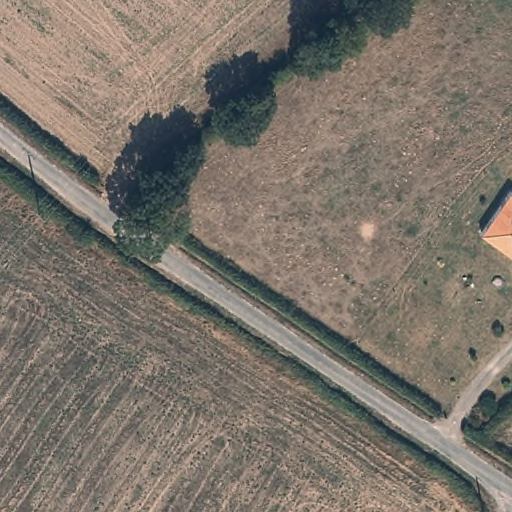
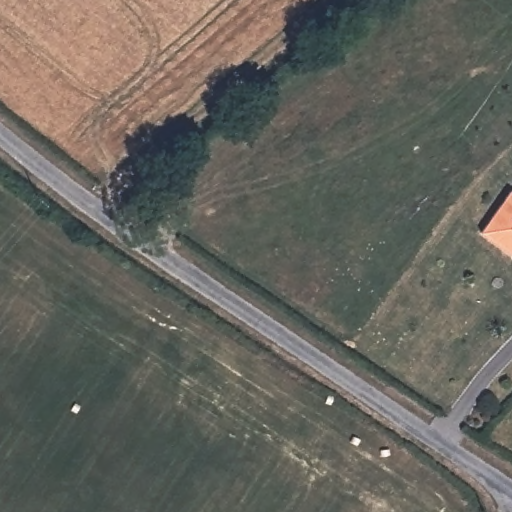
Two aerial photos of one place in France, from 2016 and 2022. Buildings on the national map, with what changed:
unchanged [(479,229),(511,188),(512,189),(512,254),(512,255),(479,229)]

